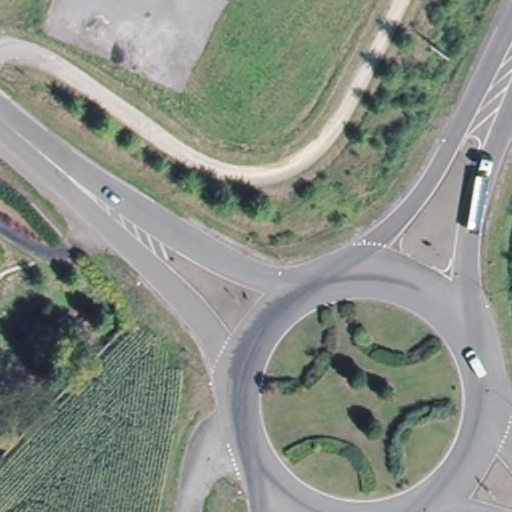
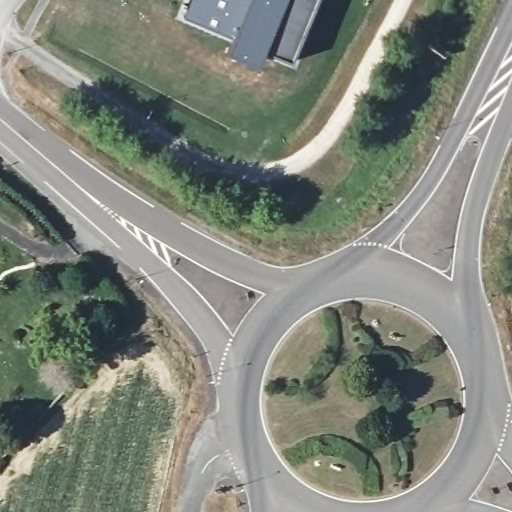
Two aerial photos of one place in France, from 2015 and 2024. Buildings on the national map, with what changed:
new [(297,55),(266,43),(272,28),(247,18),(241,33),(189,12),(194,0),(319,0),(297,55)]

